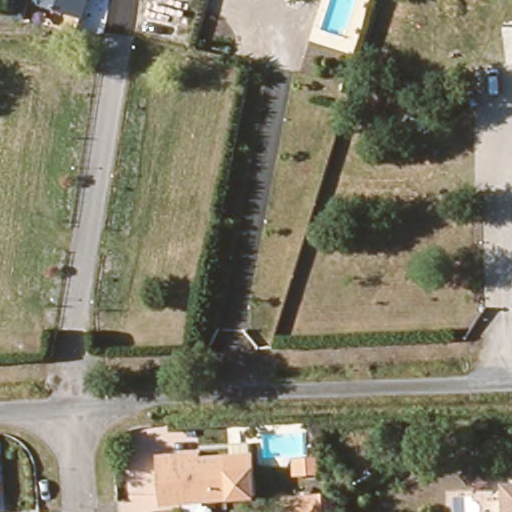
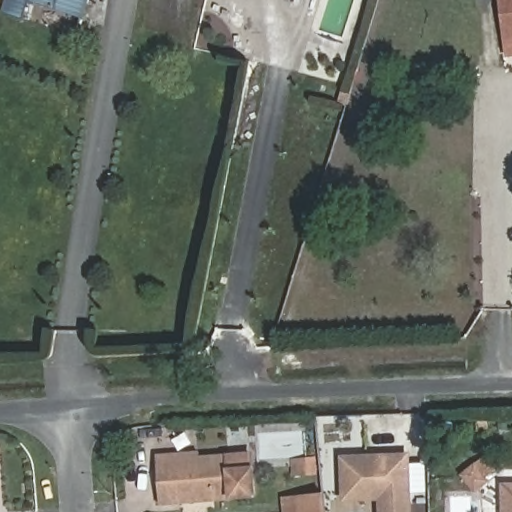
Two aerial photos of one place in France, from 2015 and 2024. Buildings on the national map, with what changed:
unchanged [(79,32),(62,27),(66,12),(29,1),(29,0),(89,0),(79,32)]
new [(512,42),(506,42),(501,0),(512,0),(512,42)]
unchanged [(254,495),(161,503),(158,457),(175,455),(197,454),(197,458),(251,454),(254,495)]
new [(341,455),(410,454),(412,512),(379,512),(379,501),(343,501),(341,455)]
unchanged [(295,473),(293,459),(315,456),(316,472),(295,473)]
unchanged [(485,460),(492,469),(483,476),(486,481),(475,489),(464,475),(485,460)]
unchanged [(512,483),(512,512),(500,512),(499,483),(512,483)]
unchanged [(324,494),(325,512),(288,512),(287,497),(324,494)]

